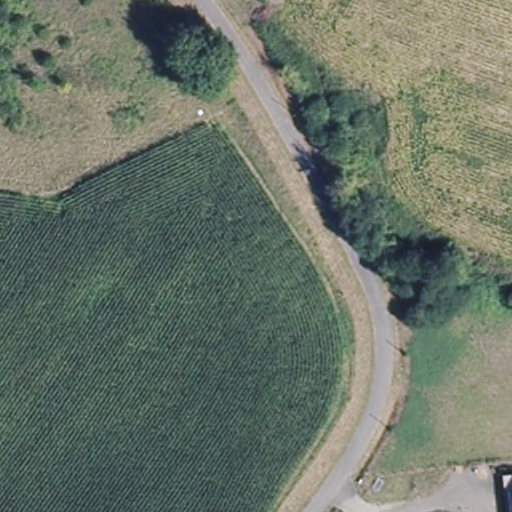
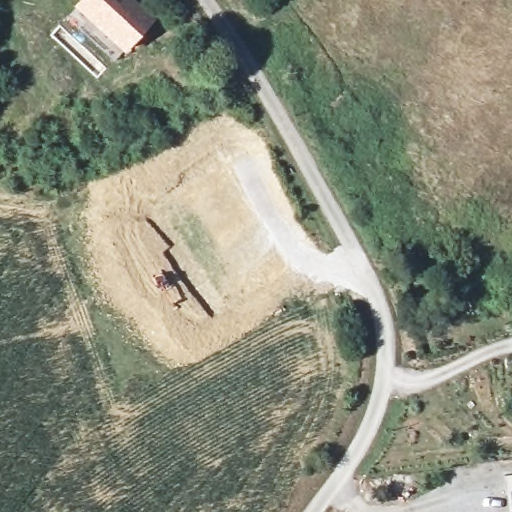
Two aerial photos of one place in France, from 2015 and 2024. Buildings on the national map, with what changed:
new [(155,20),(125,53),(72,7),(79,0),(133,0),(155,20)]
new [(512,472),(512,492),(512,512),(506,512),(501,474),(512,472)]
demolished [(512,474),(512,512),(511,512),(506,475),(512,474)]

